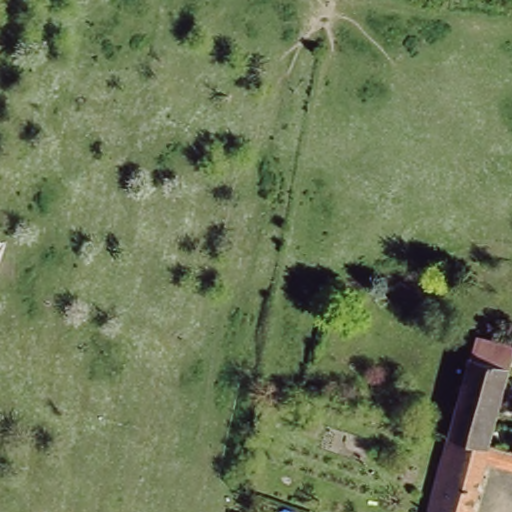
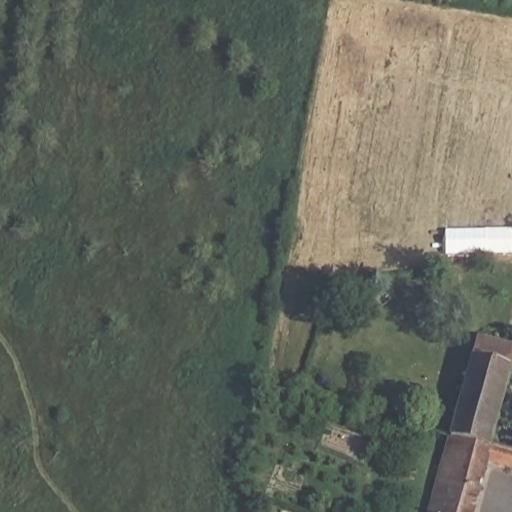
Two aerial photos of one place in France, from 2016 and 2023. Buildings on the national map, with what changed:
unchanged [(475,335),(512,346),(512,353),(485,446),(447,434),(475,335)]
unchanged [(447,434),(485,446),(511,454),(512,451),(512,464),(487,457),(471,512),(425,512),(447,434)]

